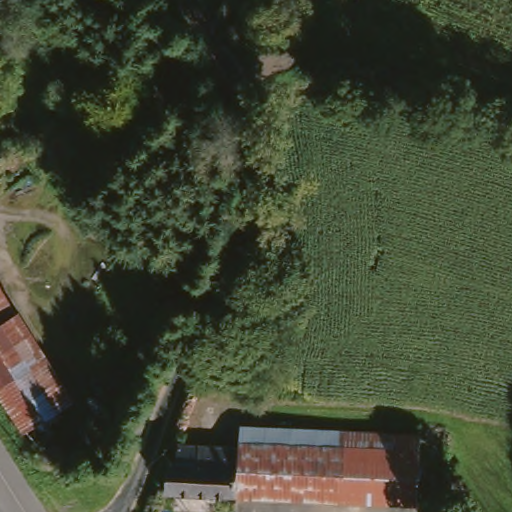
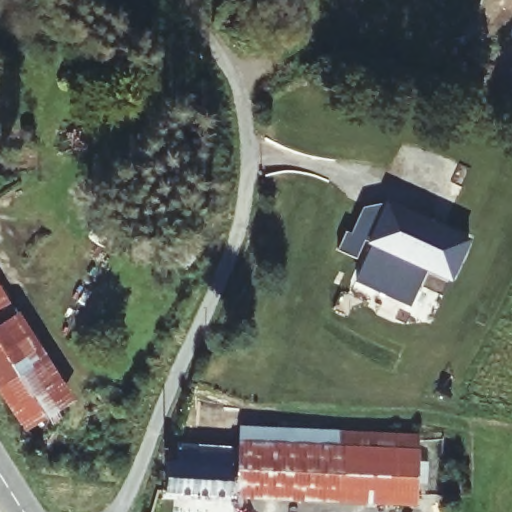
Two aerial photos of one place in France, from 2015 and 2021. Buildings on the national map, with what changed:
new [(366,246),(379,215),(383,206),(425,224),(465,241),(447,284),(423,274),(408,308),(354,285),(370,247),(366,246)]
unchanged [(0,324),(0,291),(15,315),(0,324)]
unchanged [(88,427),(52,452),(0,375),(0,324),(15,315),(88,427)]
unchanged [(318,496),(173,490),(173,458),(183,458),(183,442),(245,445),(248,424),(323,427),(318,496)]
unchanged [(318,496),(323,427),(423,431),(420,501),(318,496)]

